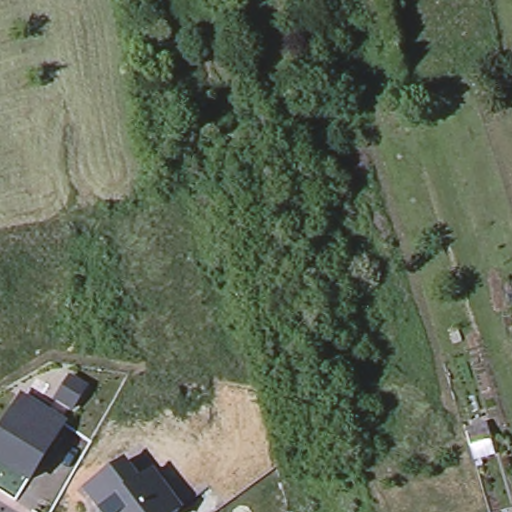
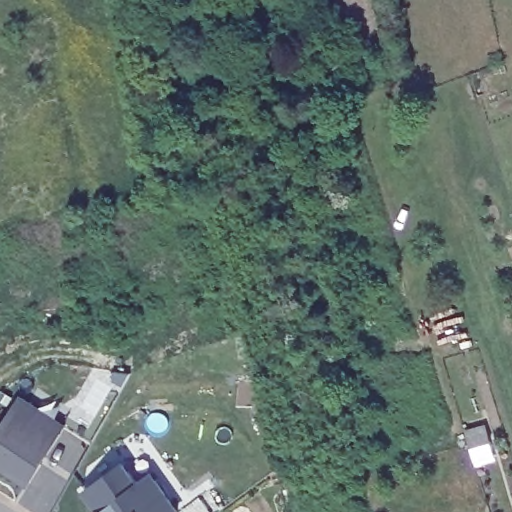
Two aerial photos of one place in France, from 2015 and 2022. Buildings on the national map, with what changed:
unchanged [(55,397),(68,375),(84,385),(73,406),(55,397)]
unchanged [(0,426),(19,395),(61,421),(26,478),(0,461),(0,426)]
unchanged [(83,491),(123,459),(137,479),(153,468),(181,511),(180,512),(95,512),(83,491)]

